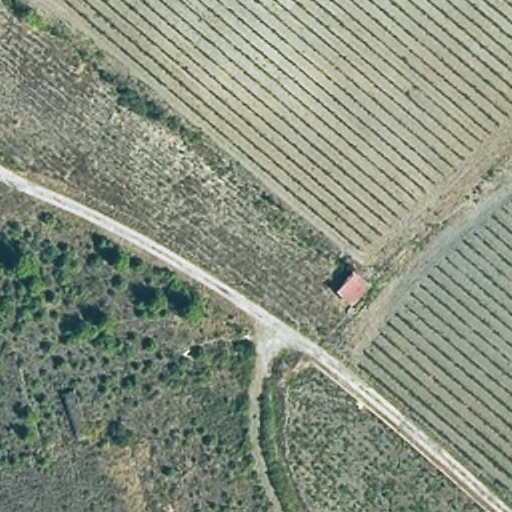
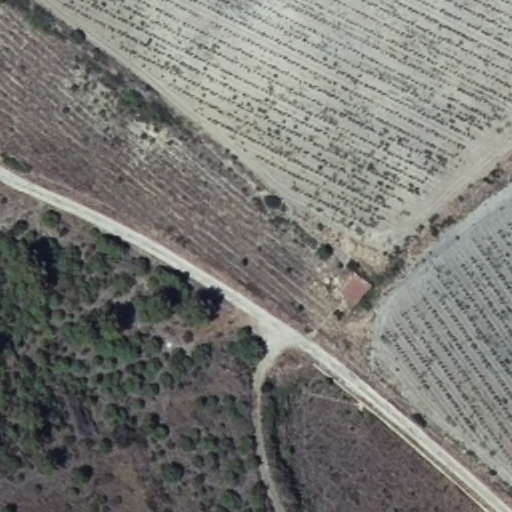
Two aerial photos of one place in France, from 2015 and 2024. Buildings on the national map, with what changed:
unchanged [(370,277),(347,300),(332,287),(352,263),(370,277)]

